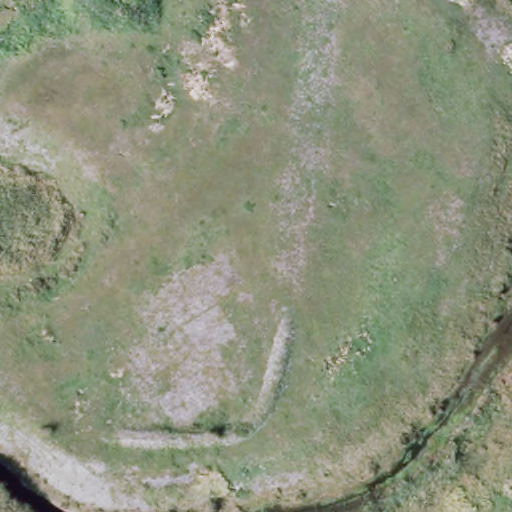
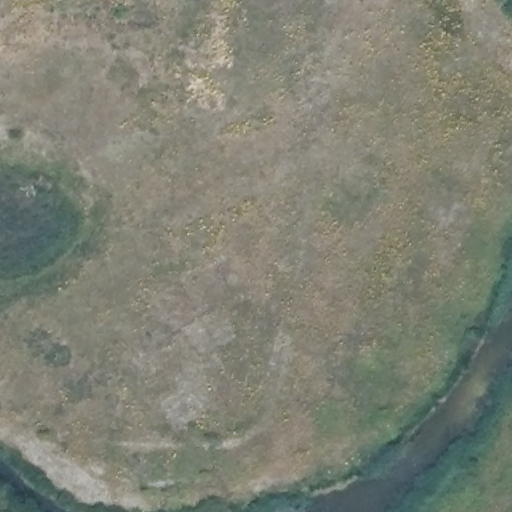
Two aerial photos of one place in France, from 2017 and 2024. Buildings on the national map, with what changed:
unchanged [(0,512),(0,479),(35,451),(58,474),(10,512),(0,512)]

